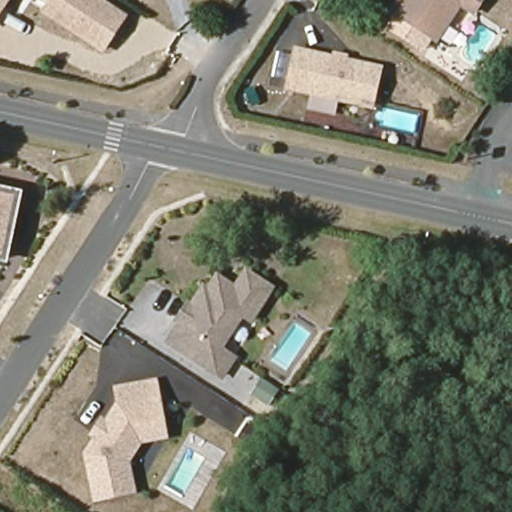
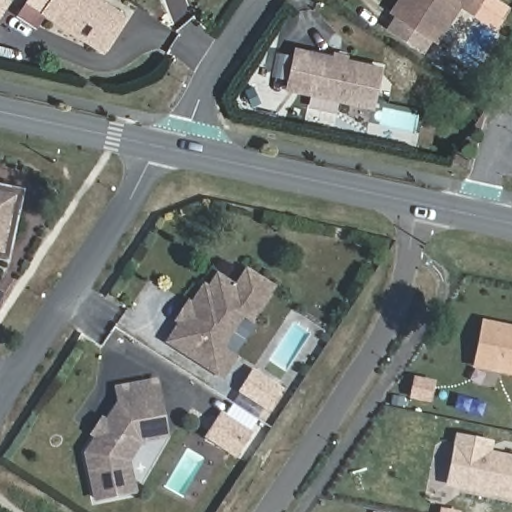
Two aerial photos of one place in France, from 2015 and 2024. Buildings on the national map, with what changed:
unchanged [(0,0),(10,0),(0,14),(0,0)]
unchanged [(101,47),(42,8),(47,0),(102,0),(124,14),(101,47)]
unchanged [(435,39),(392,10),(399,0),(482,0),(473,12),(460,3),(446,22),(435,39)]
unchanged [(297,48),(381,67),(372,104),(288,85),(297,48)]
unchanged [(9,264),(0,263),(0,183),(25,188),(9,264)]
unchanged [(175,321),(173,317),(185,299),(191,301),(202,282),(207,282),(213,272),(233,282),(244,265),(274,285),(248,325),(239,320),(221,346),(235,356),(221,377),(165,339),(175,321)]
new [(488,325),(512,330),(512,374),(480,367),(488,325)]
unchanged [(82,450),(115,404),(112,382),(155,374),(170,436),(146,439),(129,464),(135,492),(91,501),(82,450)]
new [(409,398),(413,376),(435,381),(431,403),(409,398)]
new [(254,432),(236,459),(203,437),(221,410),(254,432)]
new [(494,440),(492,451),(512,455),(512,500),(445,486),(455,433),(494,440)]

